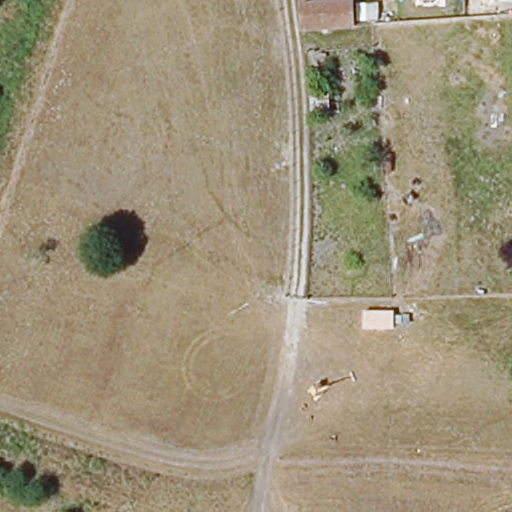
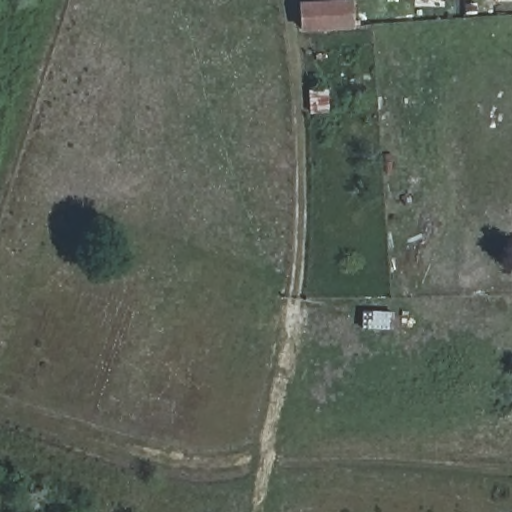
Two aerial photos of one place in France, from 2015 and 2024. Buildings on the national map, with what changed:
unchanged [(311,0),(353,0),(356,23),(304,30),(300,1),(311,0)]

